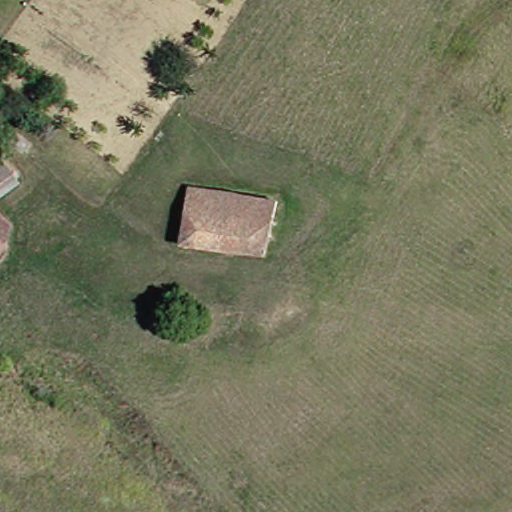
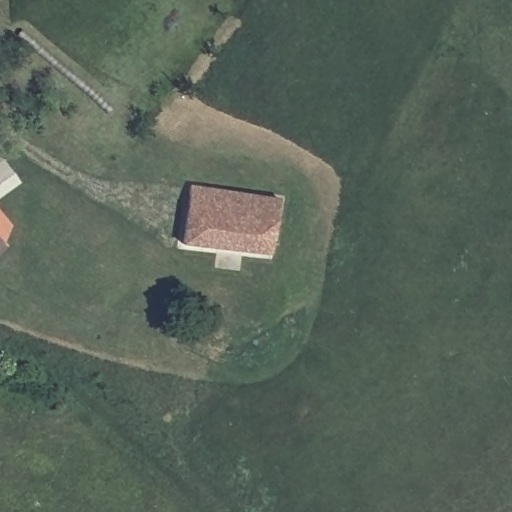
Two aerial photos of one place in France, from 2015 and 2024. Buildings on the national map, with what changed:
unchanged [(7,164),(24,184),(0,205),(0,157),(7,164)]
unchanged [(190,245),(193,192),(280,193),(276,249),(266,250),(190,245)]
unchanged [(14,245),(16,249),(0,264),(0,205),(29,229),(14,245)]

